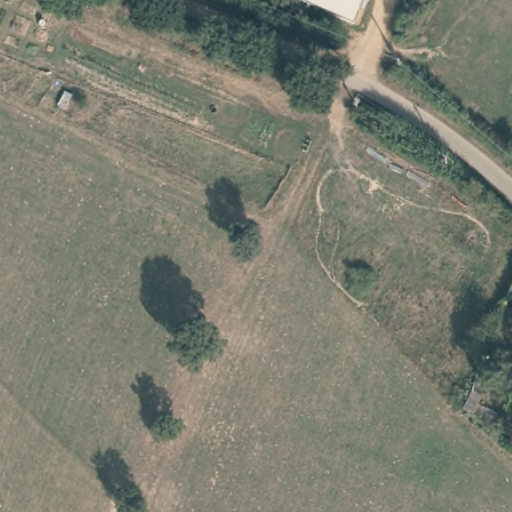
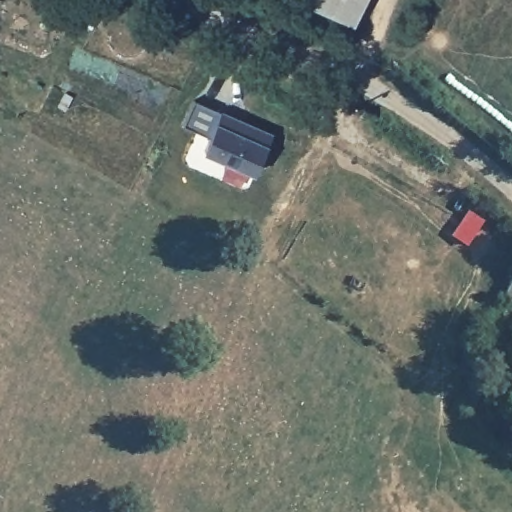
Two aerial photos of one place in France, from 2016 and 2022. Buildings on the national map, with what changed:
unchanged [(298,0),(363,0),(354,25),(298,0)]
new [(268,145),(255,177),(201,154),(209,137),(181,126),(192,100),(220,112),(273,132),(268,145)]
unchanged [(512,301),(509,300),(512,293),(512,301)]

